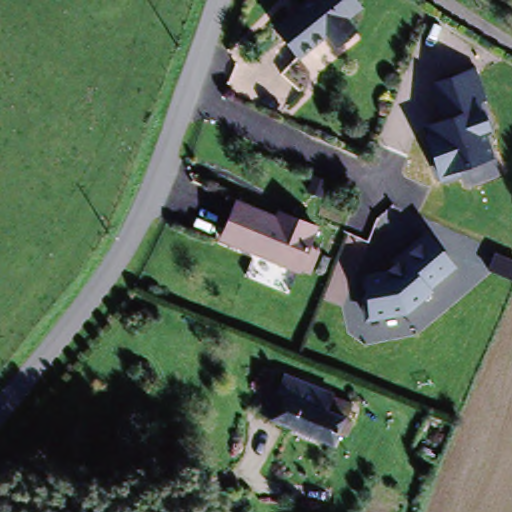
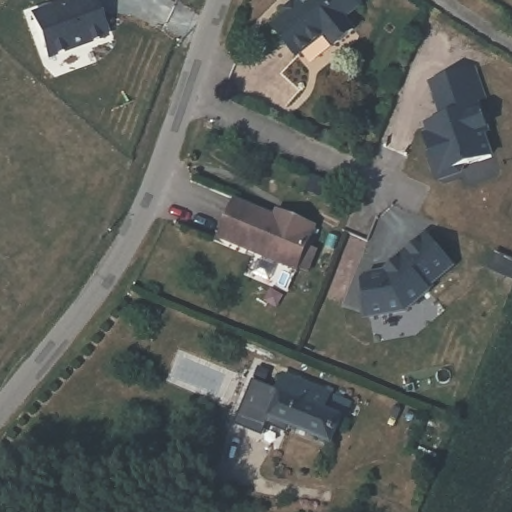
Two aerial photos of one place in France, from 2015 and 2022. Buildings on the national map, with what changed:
new [(94,0),(108,38),(47,60),(29,14),(67,0),(94,0)]
unchanged [(350,31),(332,46),(322,35),(295,59),(293,59),(294,58),(268,26),(302,0),(348,0),(354,7),(340,19),(350,31)]
unchanged [(476,66),(487,100),(482,101),(492,134),(487,135),(495,160),(438,179),(421,125),(442,119),(430,80),(476,66)]
unchanged [(230,207),(270,222),(272,216),(287,222),(310,232),(292,275),(215,244),(230,207)]
unchanged [(458,270),(412,314),(367,320),(360,274),(385,268),(395,262),(392,258),(425,232),(458,270)]
unchanged [(263,424),(274,398),(278,400),(285,385),(352,414),(345,431),(342,430),(332,454),(263,424)]

